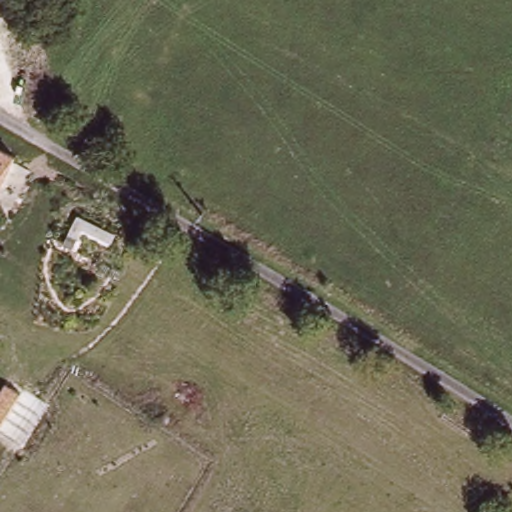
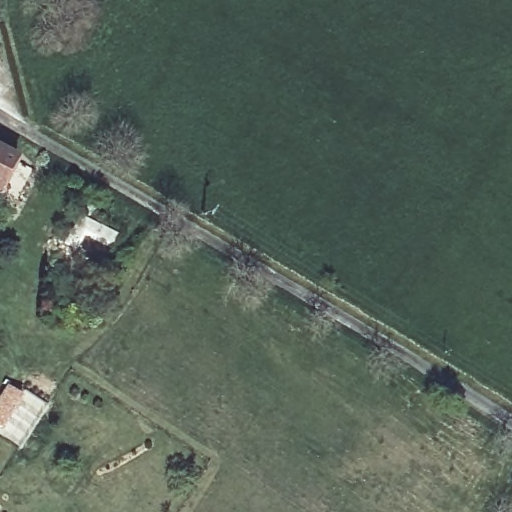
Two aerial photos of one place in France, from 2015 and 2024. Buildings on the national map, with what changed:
unchanged [(0,154),(16,163),(0,191),(0,154)]

